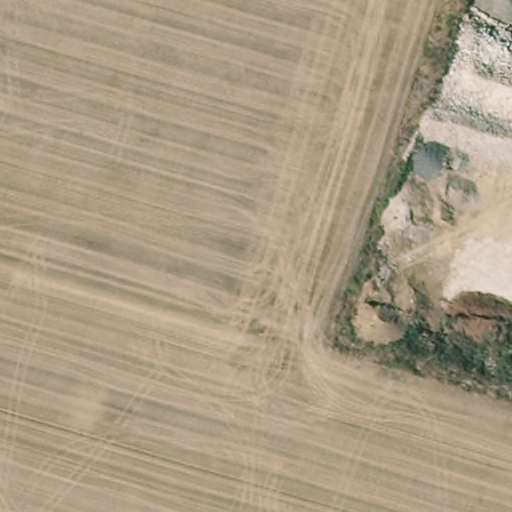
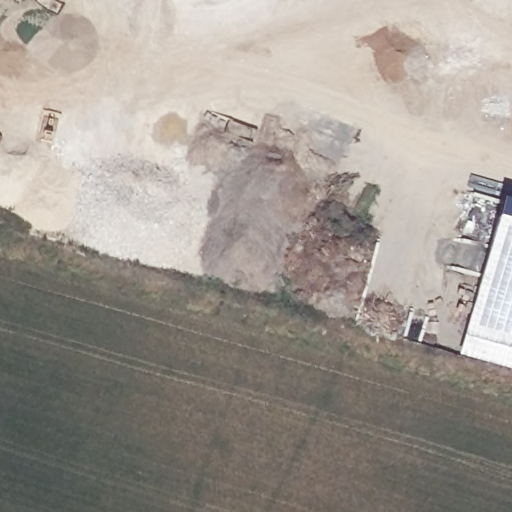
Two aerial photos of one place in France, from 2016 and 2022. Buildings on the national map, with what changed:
new [(459,355),(501,199),(512,203),(512,371),(459,355)]

